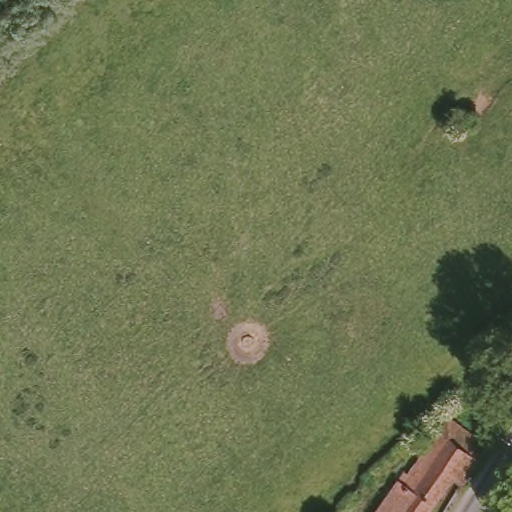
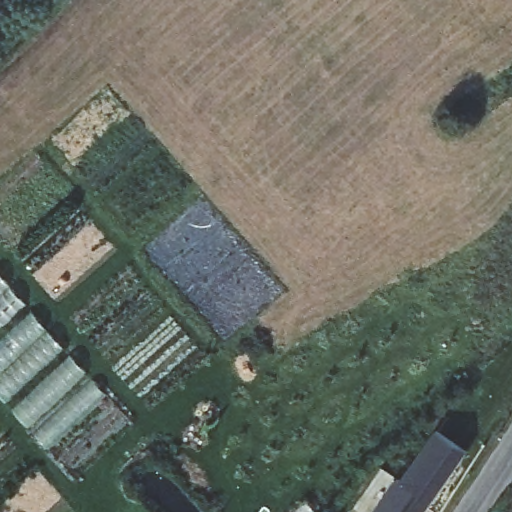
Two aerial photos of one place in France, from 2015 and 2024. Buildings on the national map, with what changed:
new [(0,269),(109,393),(50,446),(0,391),(0,269)]
unchanged [(418,447),(441,418),(451,405),(490,433),(480,447),(460,478),(456,475),(460,468),(455,464),(419,512),(370,512),(368,511),(418,447)]

